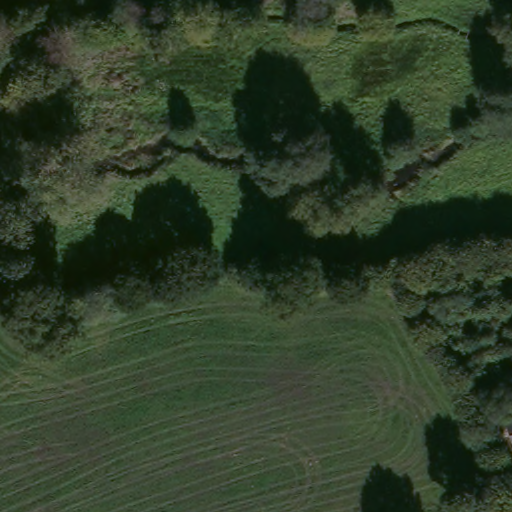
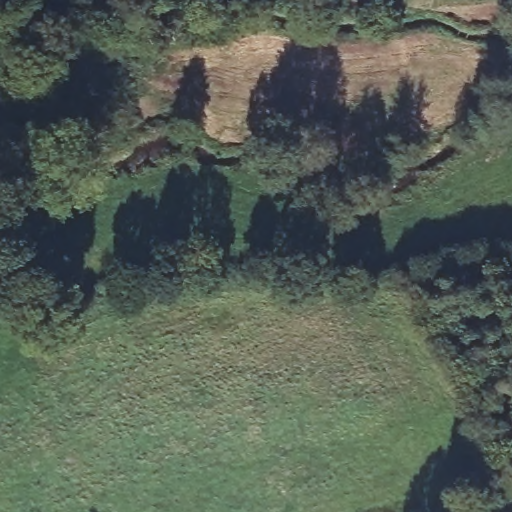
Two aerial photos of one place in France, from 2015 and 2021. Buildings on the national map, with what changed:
[]

